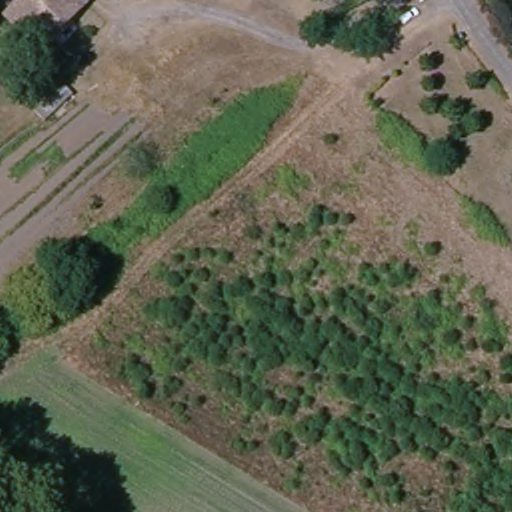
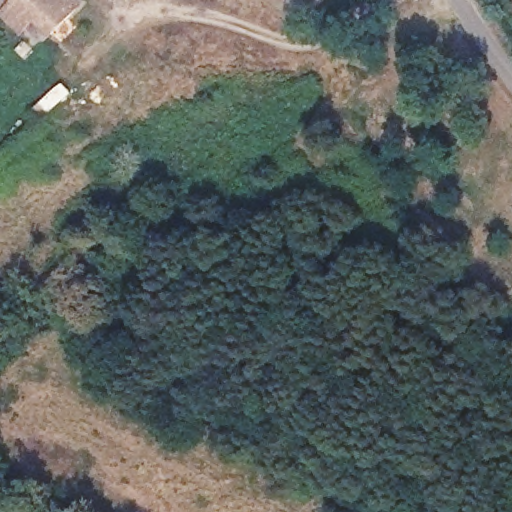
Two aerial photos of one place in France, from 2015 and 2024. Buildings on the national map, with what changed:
unchanged [(26,34),(8,17),(22,0),(88,0),(60,32),(41,16),(26,34)]

